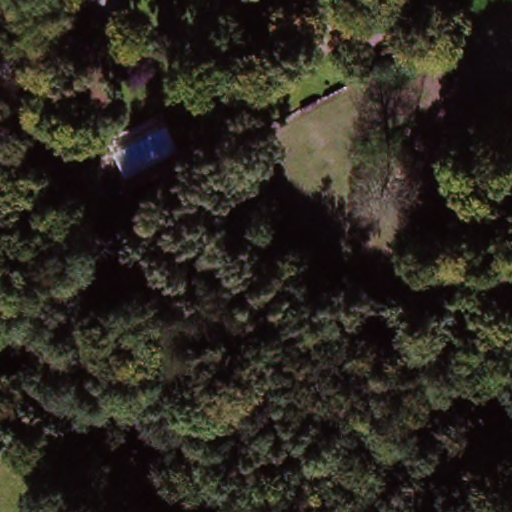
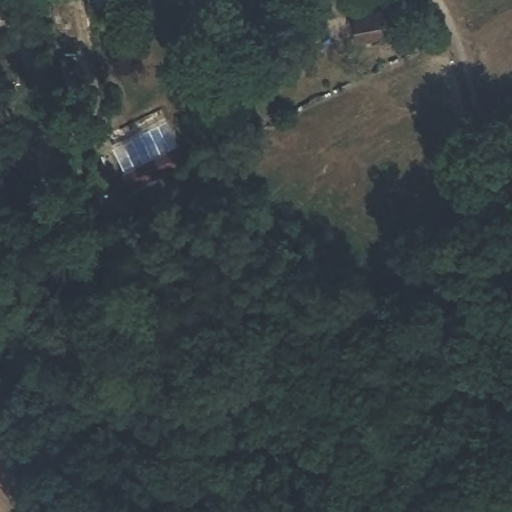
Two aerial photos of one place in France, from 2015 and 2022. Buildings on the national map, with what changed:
unchanged [(90,0),(125,0),(90,6),(90,0)]
unchanged [(354,31),(350,6),(380,0),(403,0),(405,21),(354,31)]
unchanged [(130,169),(115,129),(169,107),(184,143),(130,169)]

